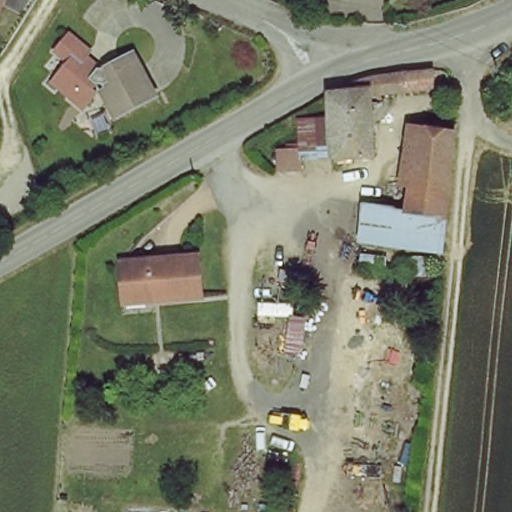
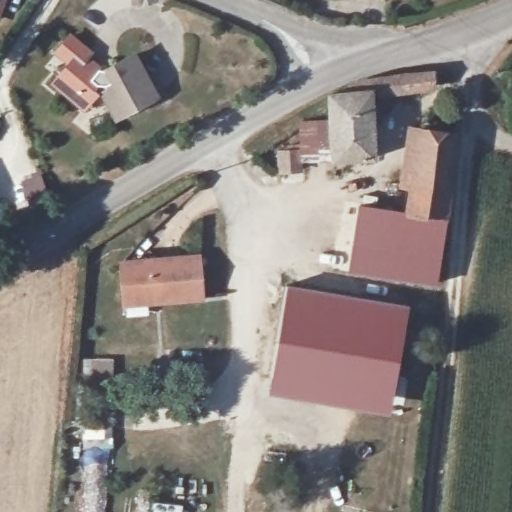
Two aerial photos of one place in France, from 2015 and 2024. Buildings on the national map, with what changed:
unchanged [(0,13),(0,0),(5,0),(0,13)]
unchanged [(75,35),(87,48),(95,58),(100,67),(107,70),(137,53),(150,72),(160,89),(117,115),(107,96),(108,92),(110,86),(107,83),(92,85),(95,96),(78,109),(53,81),(71,63),(60,51),(75,35)]
unchanged [(377,84),(377,70),(436,72),(433,89),(376,89),(377,84)]
unchanged [(373,158),(330,158),(332,88),(335,87),(377,84),(376,89),(373,158)]
new [(330,158),(301,162),(298,119),(331,117),(330,158)]
unchanged [(404,120),(421,120),(420,215),(400,213),(404,120)]
unchanged [(453,121),(453,188),(447,217),(420,215),(421,120),(453,121)]
unchanged [(297,157),(297,169),(273,169),(273,149),(297,147),(297,157)]
new [(347,271),(357,202),(400,210),(400,213),(420,215),(447,217),(436,285),(347,271)]
unchanged [(126,286),(127,259),(200,262),(198,302),(158,302),(125,302),(126,286)]
new [(407,315),(392,404),(273,385),(287,296),(407,315)]

